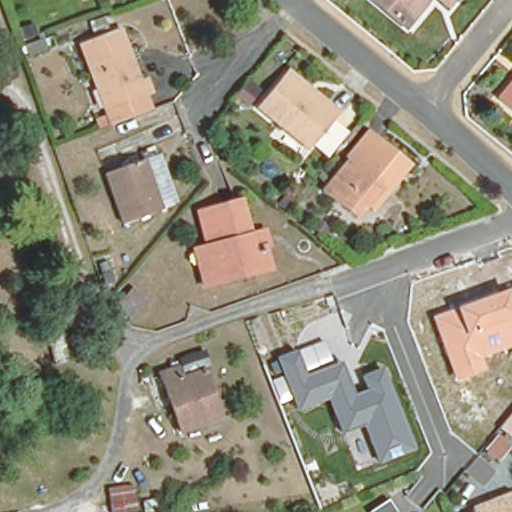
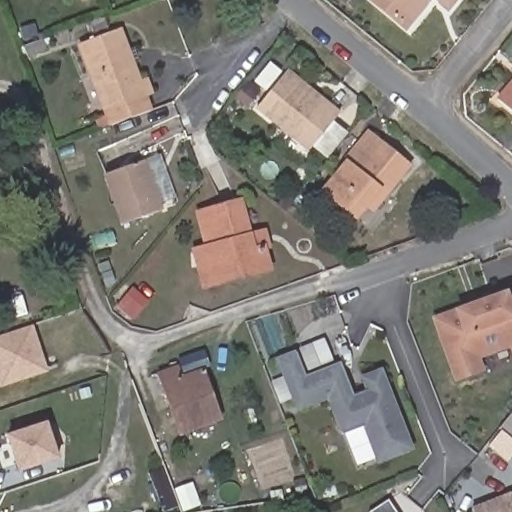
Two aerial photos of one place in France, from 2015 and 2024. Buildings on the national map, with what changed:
unchanged [(378,0),(426,0),(405,25),(399,19),(378,0)]
unchanged [(439,0),(451,0),(446,6),(439,0)]
unchanged [(109,123),(103,108),(77,39),(114,26),(123,50),(119,51),(112,54),(117,69),(125,67),(130,82),(139,79),(144,95),(135,98),(140,111),(109,123)]
unchanged [(337,105),(305,144),(254,100),(282,68),(316,96),(321,91),(337,105)]
unchanged [(512,69),(512,104),(495,89),(512,69)]
unchanged [(365,200),(355,213),(324,187),(349,156),(346,154),(370,125),(383,137),(410,161),(387,188),(372,205),(365,200)]
unchanged [(145,154),(161,204),(125,216),(106,167),(145,154)]
unchanged [(186,244),(199,240),(190,205),(235,194),(244,228),(259,225),(262,239),(258,240),(262,263),(241,268),(195,280),(186,244)]
unchanged [(480,357),(485,371),(453,382),(431,317),(512,286),(512,355),(510,349),(480,357)]
new [(0,388),(0,334),(32,325),(48,372),(0,388)]
unchanged [(415,452),(376,466),(361,427),(339,435),(327,401),(296,412),(290,395),(278,400),(263,362),(321,341),(332,363),(340,361),(352,394),(363,389),(358,375),(380,366),(415,452)]
unchanged [(175,424),(155,374),(171,368),(177,382),(198,375),(215,419),(196,425),(177,432),(175,424)]
unchanged [(484,448),(512,416),(512,442),(497,460),(484,448)]
new [(59,460),(18,472),(7,434),(49,422),(59,460)]
unchanged [(470,506),(508,492),(512,493),(512,512),(473,512),(470,506)]
unchanged [(397,512),(367,512),(388,498),(397,512)]

